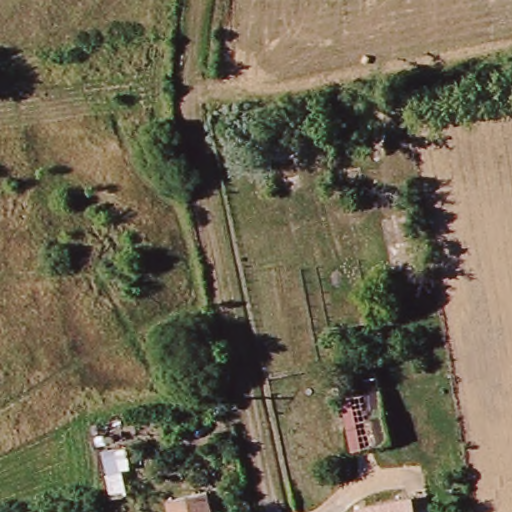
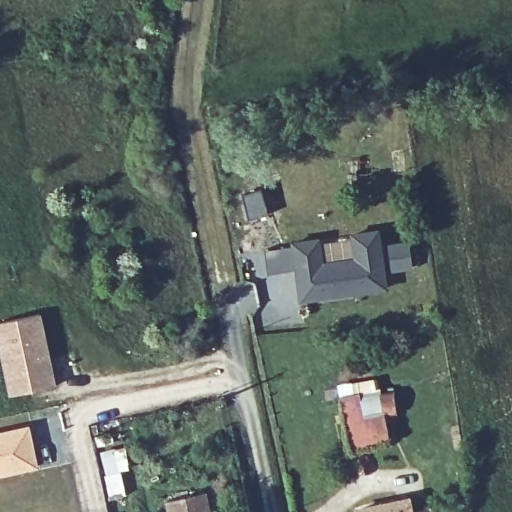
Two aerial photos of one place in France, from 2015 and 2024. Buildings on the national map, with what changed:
new [(261,187),(268,214),(248,220),(242,193),(261,187)]
new [(293,242),(318,239),(321,262),(354,257),(350,234),(380,230),(387,287),(300,303),(293,242)]
new [(0,322),(40,314),(55,384),(10,393),(0,349),(0,322)]
unchanged [(344,395),(375,387),(387,436),(356,443),(344,395)]
new [(40,468),(0,476),(0,429),(30,422),(40,468)]
unchanged [(128,467),(120,470),(122,492),(130,495),(131,512),(110,512),(99,450),(124,447),(128,467)]
unchanged [(163,512),(160,503),(204,493),(207,512),(163,512)]
unchanged [(406,512),(353,512),(352,510),(403,498),(406,512)]

